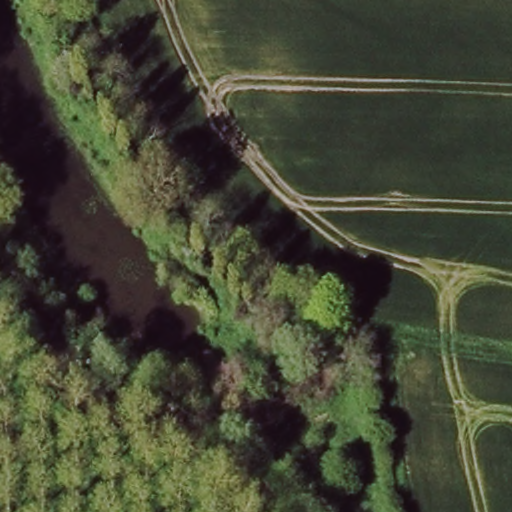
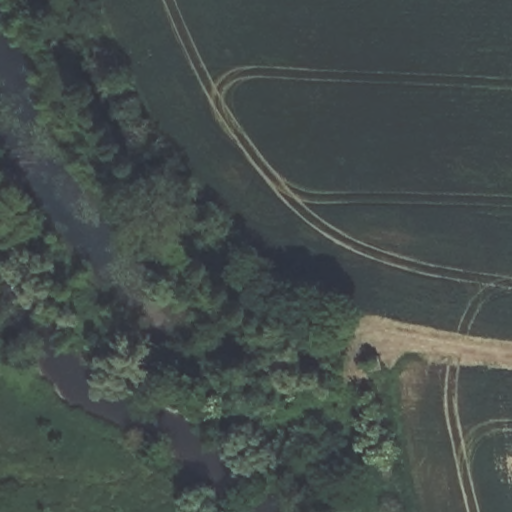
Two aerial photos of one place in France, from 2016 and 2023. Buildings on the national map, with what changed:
unchanged [(253,383),(227,404),(213,375),(238,360),(253,383)]

